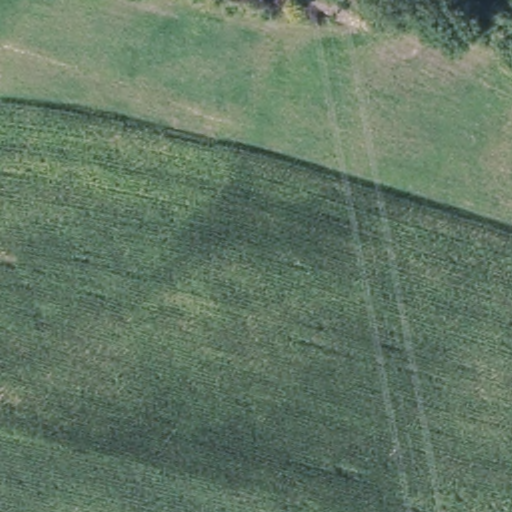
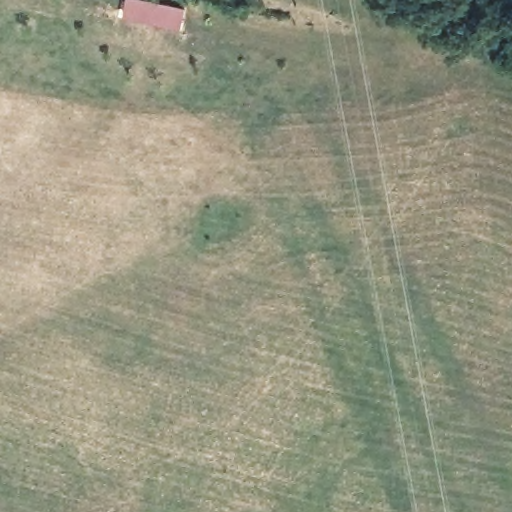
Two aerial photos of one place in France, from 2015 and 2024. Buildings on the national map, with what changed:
new [(185,10),(180,31),(120,17),(125,0),(142,0),(185,10)]

